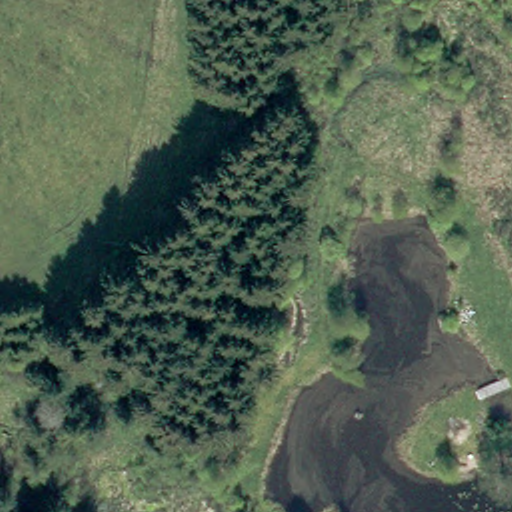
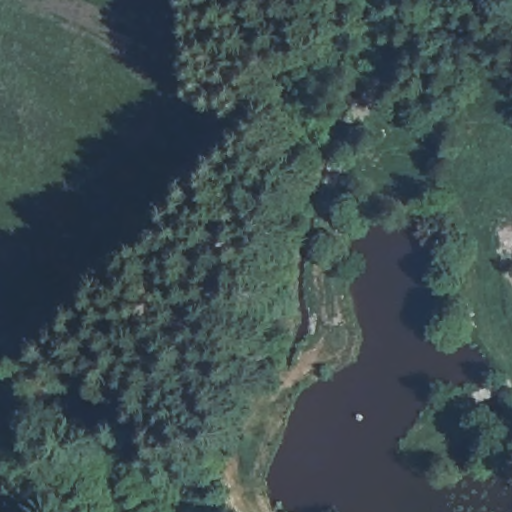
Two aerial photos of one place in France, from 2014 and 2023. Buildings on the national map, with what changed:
[]

